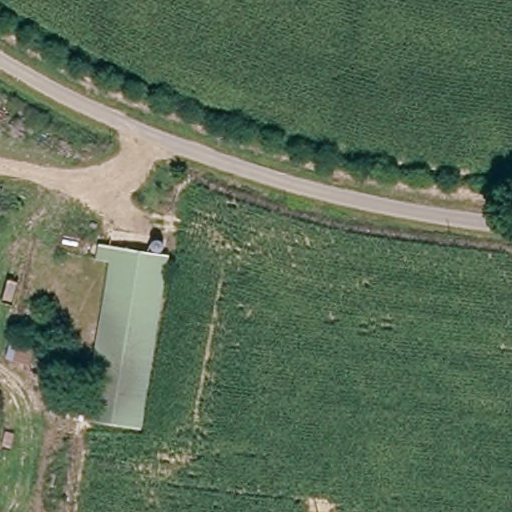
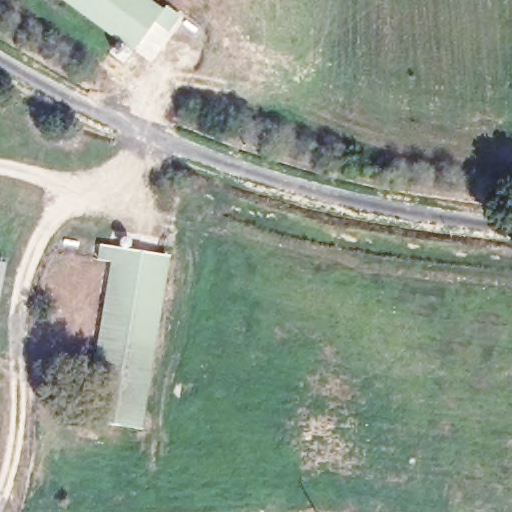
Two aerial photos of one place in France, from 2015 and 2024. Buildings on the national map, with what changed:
new [(161,9),(166,4),(179,14),(168,29),(155,20),(133,49),(64,0),(149,0),(161,9)]
unchanged [(142,427),(95,422),(111,262),(94,261),(95,246),(160,252),(142,427)]

